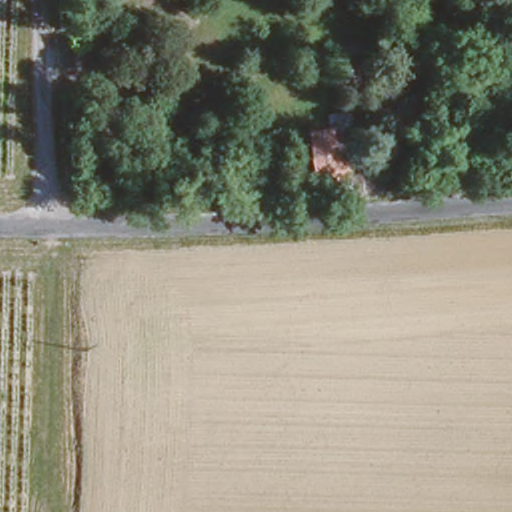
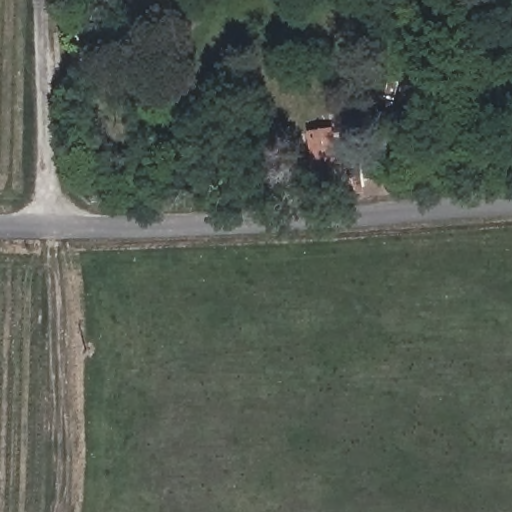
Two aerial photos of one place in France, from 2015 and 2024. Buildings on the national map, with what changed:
unchanged [(410,107),(415,81),(433,85),(426,109),(410,107)]
unchanged [(335,161),(335,143),(315,144),(314,124),(313,111),(326,111),(328,123),(335,122),(348,122),(350,142),(363,142),(365,160),(335,161)]

